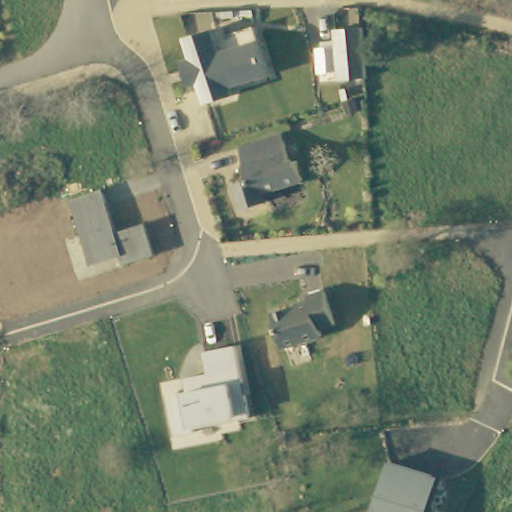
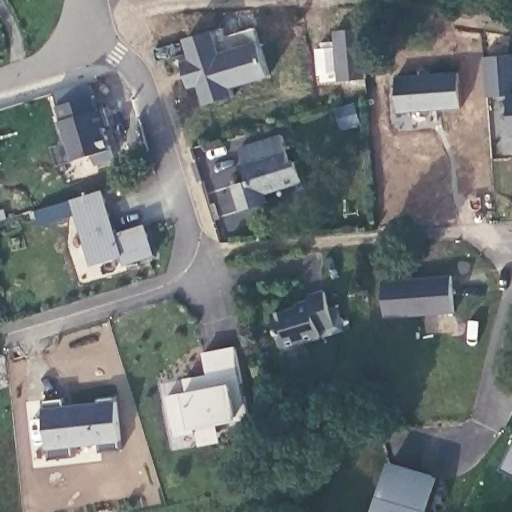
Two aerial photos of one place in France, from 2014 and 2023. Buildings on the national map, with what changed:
unchanged [(231,96),(205,104),(197,76),(205,74),(200,59),(209,55),(204,39),(256,22),(267,72),(229,86),(231,96)]
unchanged [(339,80),(339,75),(327,76),(324,42),(337,42),(336,29),(365,28),(367,77),(339,80)]
new [(512,54),(512,123),(510,95),(485,96),(482,56),(512,54)]
new [(65,142),(60,120),(61,120),(57,106),(93,95),(99,109),(103,107),(109,126),(104,127),(112,150),(73,160),(67,141),(65,142)]
unchanged [(293,158),(303,155),(308,179),(263,192),(265,204),(242,210),(233,179),(249,174),(242,144),(285,129),(293,158)]
unchanged [(73,200),(104,191),(116,231),(148,222),(156,255),(124,265),(121,256),(94,264),(73,200)]
new [(384,316),(382,280),(451,275),(453,313),(384,316)]
unchanged [(321,321),(324,330),(285,344),(275,310),(311,295),(309,290),(325,285),(335,316),(321,321)]
unchanged [(182,392),(189,390),(185,377),(209,373),(206,352),(236,347),(250,418),(191,428),(182,392)]
new [(100,442),(72,446),(74,456),(48,458),(48,449),(43,407),(116,400),(120,440),(120,448),(101,450),(100,442)]
new [(512,474),(501,468),(512,444),(512,474)]
unchanged [(389,461),(440,477),(430,512),(374,512),(389,461)]

